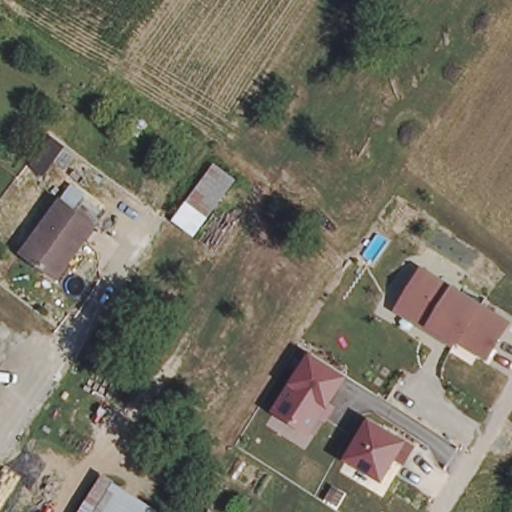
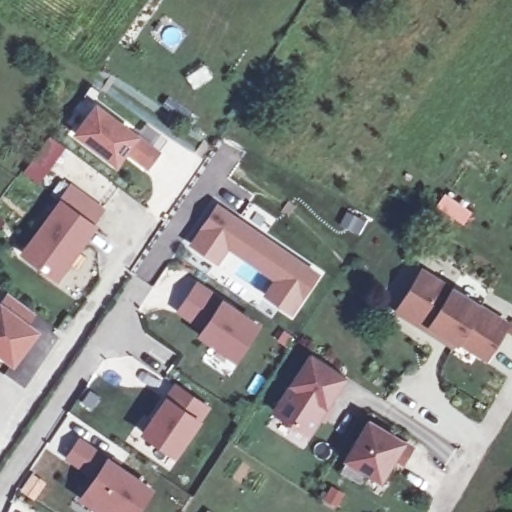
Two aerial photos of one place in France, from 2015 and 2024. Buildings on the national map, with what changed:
new [(94,101),(139,133),(160,151),(147,169),(126,152),(115,166),(72,133),(94,101)]
demolished [(194,239),(173,222),(213,164),(234,180),(194,239)]
unchanged [(75,272),(65,264),(55,279),(20,253),(58,201),(91,226),(75,249),(85,257),(75,272)]
new [(218,203),(321,273),(292,315),(264,295),(273,280),(229,249),(218,264),(189,244),(218,203)]
unchanged [(511,323),(488,360),(460,346),(456,352),(394,313),(422,266),(511,323)]
new [(261,323),(236,362),(198,336),(202,329),(176,312),(198,280),(261,323)]
new [(38,313),(29,321),(39,330),(13,365),(0,356),(0,298),(7,291),(38,313)]
unchanged [(348,378),(331,402),(339,407),(327,424),(321,420),(309,438),(296,429),(291,437),(266,423),(273,412),(289,386),(309,352),(348,378)]
new [(169,385),(206,409),(176,459),(140,436),(169,385)]
unchanged [(344,460),(369,418),(407,439),(416,445),(405,464),(397,459),(381,482),(344,460)]
new [(151,489),(135,512),(122,512),(111,505),(106,512),(102,512),(82,497),(96,476),(68,458),(78,440),(151,489)]

